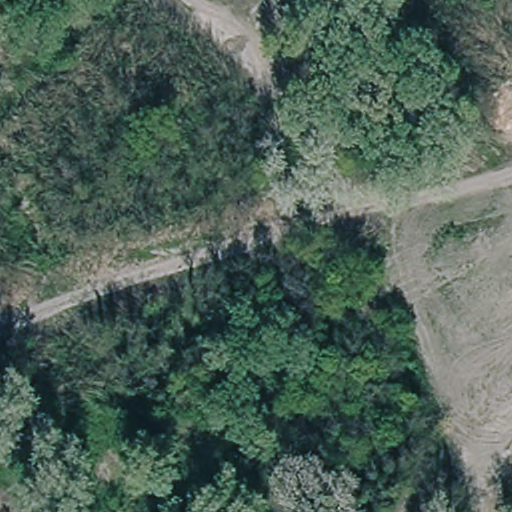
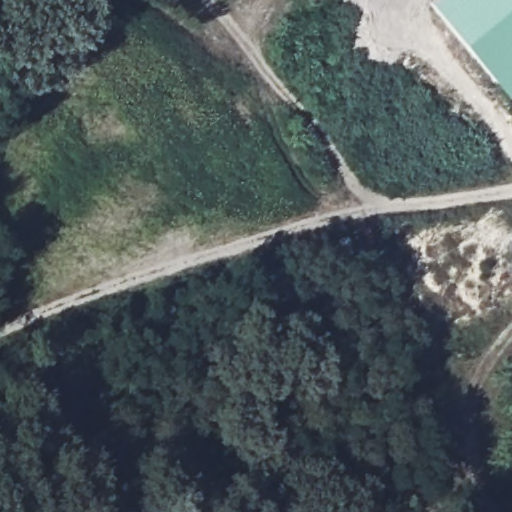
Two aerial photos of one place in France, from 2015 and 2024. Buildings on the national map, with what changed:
new [(427,0),(512,0),(512,88),(505,94),(427,0)]

